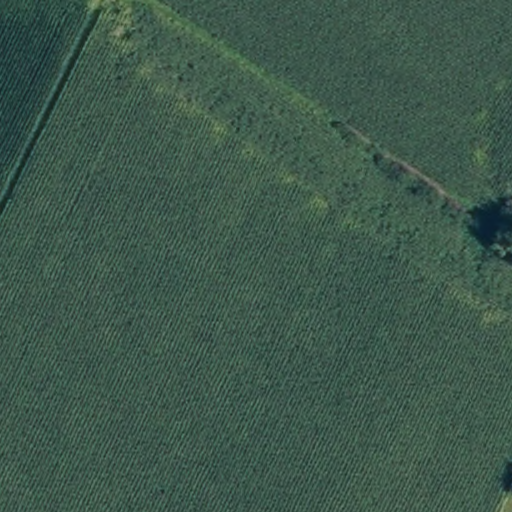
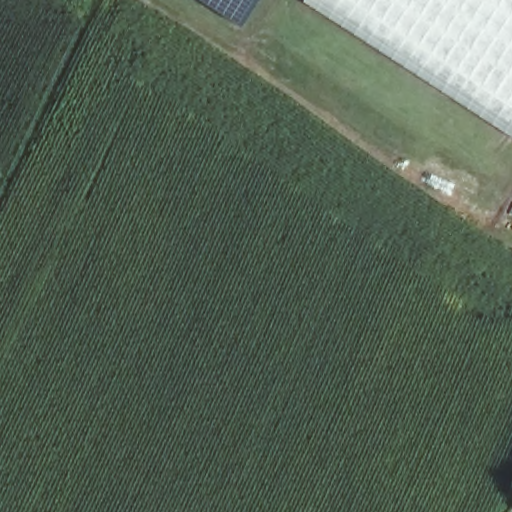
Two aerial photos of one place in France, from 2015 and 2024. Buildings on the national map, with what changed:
new [(243,26),(202,0),(260,0),(243,26)]
new [(512,138),(305,3),(307,0),(512,0),(512,138)]

